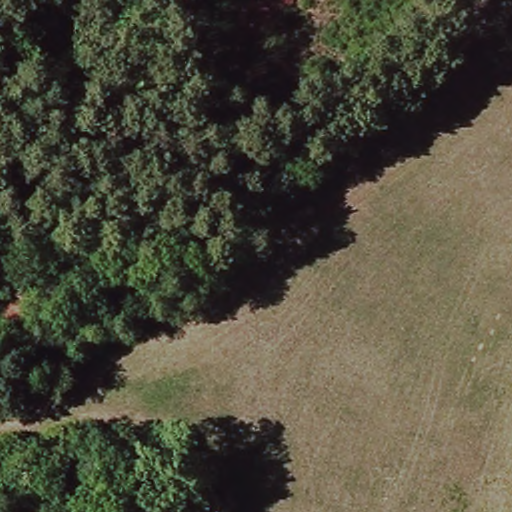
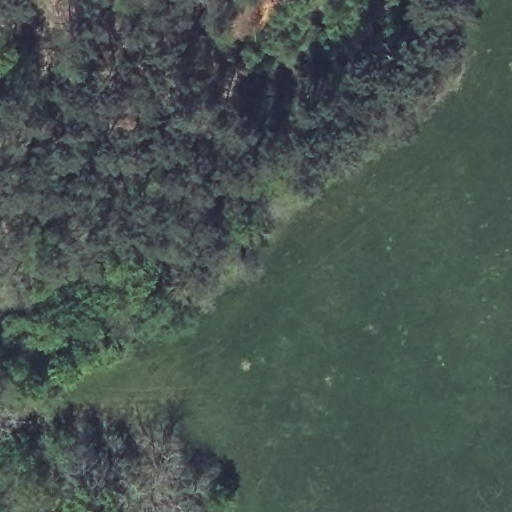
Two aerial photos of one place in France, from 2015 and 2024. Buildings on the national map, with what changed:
unchanged [(78,287),(85,288),(88,270),(131,276),(124,321),(74,314),(78,287)]

